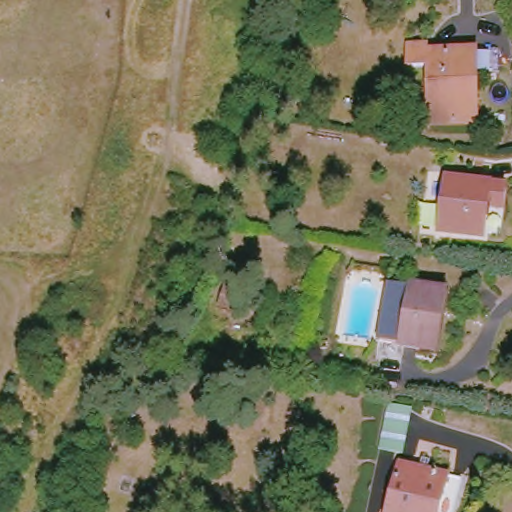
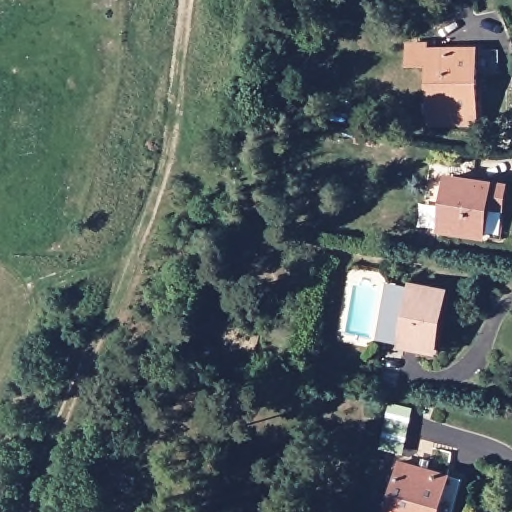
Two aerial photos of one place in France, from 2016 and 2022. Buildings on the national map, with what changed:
unchanged [(487,129),(457,128),(460,107),(430,105),(431,66),(411,67),(413,38),(436,41),(435,49),(483,47),(487,129)]
unchanged [(299,85),(296,100),(282,98),(284,83),(299,85)]
unchanged [(456,177),(512,185),(512,190),(510,209),(494,207),(490,235),(447,230),(456,177)]
unchanged [(447,359),(407,355),(409,347),(384,340),(394,286),(415,290),(416,283),(455,290),(447,359)]
unchanged [(398,402),(425,409),(413,454),(388,447),(398,402)]
unchanged [(394,512),(404,469),(466,483),(458,512),(394,512)]

